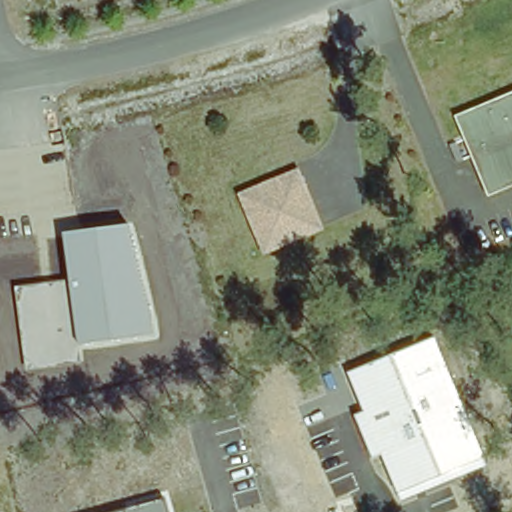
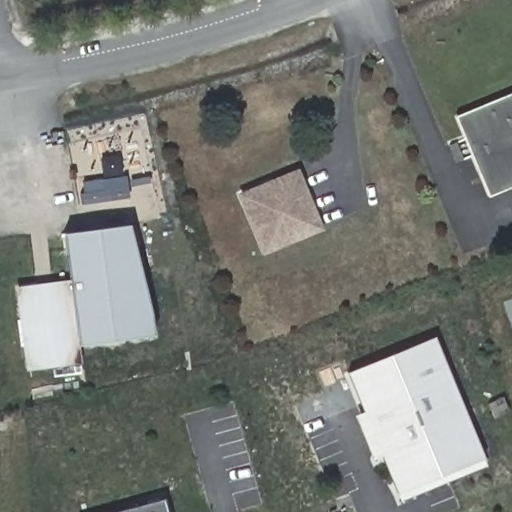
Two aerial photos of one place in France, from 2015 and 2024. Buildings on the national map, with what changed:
unchanged [(512,180),(489,189),(459,118),(512,96),(512,180)]
unchanged [(266,251),(245,196),(300,174),(322,230),(266,251)]
unchanged [(153,332),(78,345),(80,364),(27,371),(16,286),(69,278),(65,234),(129,224),(153,332)]
unchanged [(486,468),(401,499),(382,455),(370,458),(354,415),(362,410),(347,371),(432,337),(486,468)]
unchanged [(114,512),(163,499),(167,512),(114,512)]

